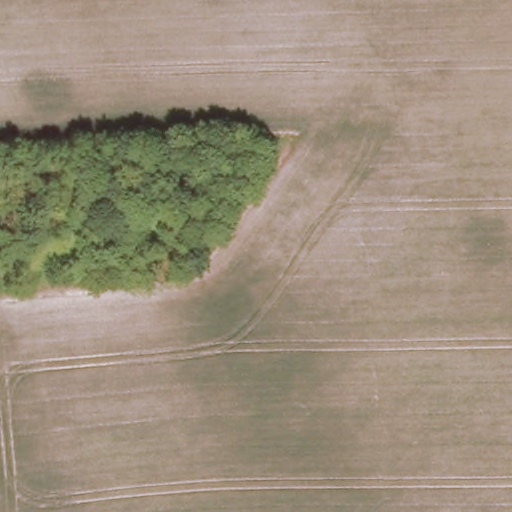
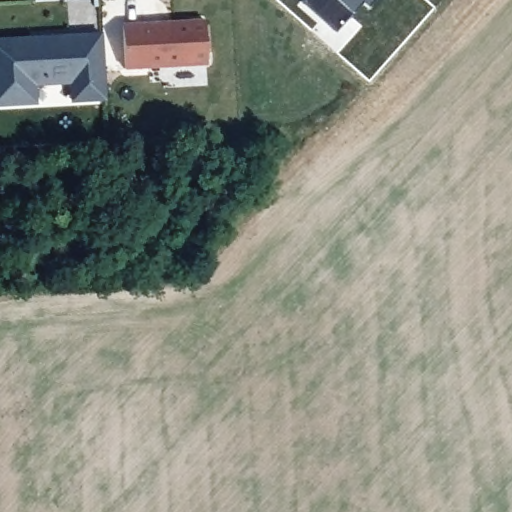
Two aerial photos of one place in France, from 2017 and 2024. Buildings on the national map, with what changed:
new [(301,1),(302,0),(374,0),(367,7),(364,2),(353,13),(335,34),(301,1)]
new [(207,63),(124,67),(121,24),(204,20),(207,63)]
new [(105,96),(73,98),(71,79),(31,81),(33,100),(0,103),(0,41),(29,40),(29,46),(39,45),(39,40),(68,39),(68,37),(101,35),(105,96)]

